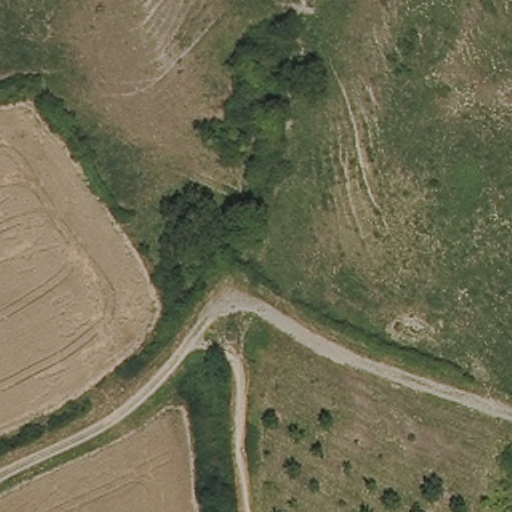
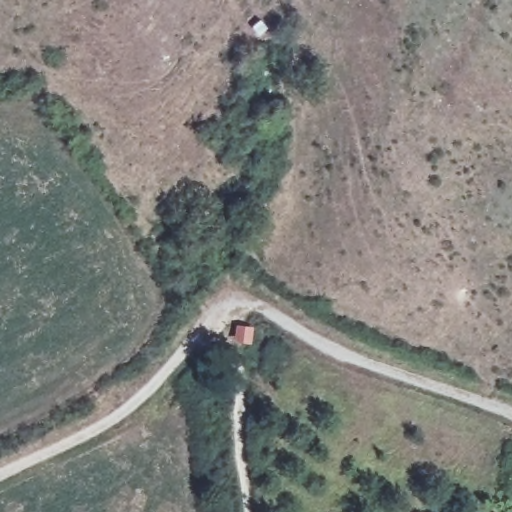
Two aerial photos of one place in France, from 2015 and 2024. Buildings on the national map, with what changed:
unchanged [(244,161),(237,165),(224,139),(246,131),(247,136),(255,151),(257,156),(244,161)]

